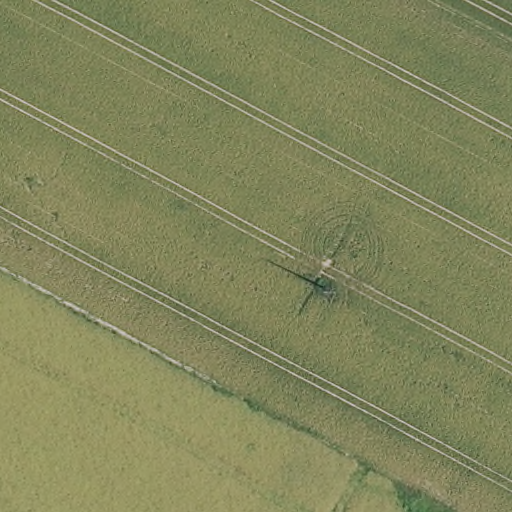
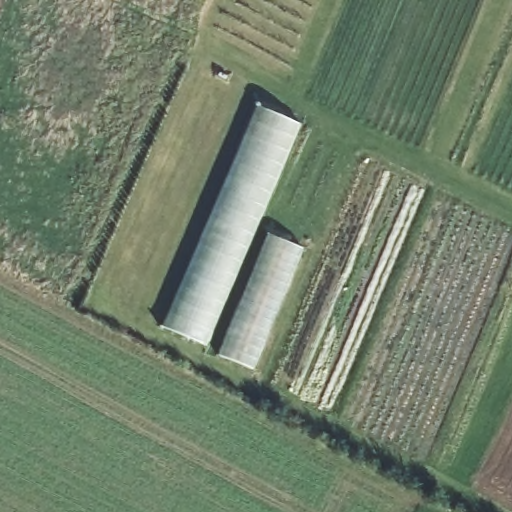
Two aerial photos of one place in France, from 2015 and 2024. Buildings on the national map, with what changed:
new [(207,346),(162,328),(256,107),(301,125),(207,346)]
new [(303,248),(254,370),(216,355),(267,235),(303,248)]

